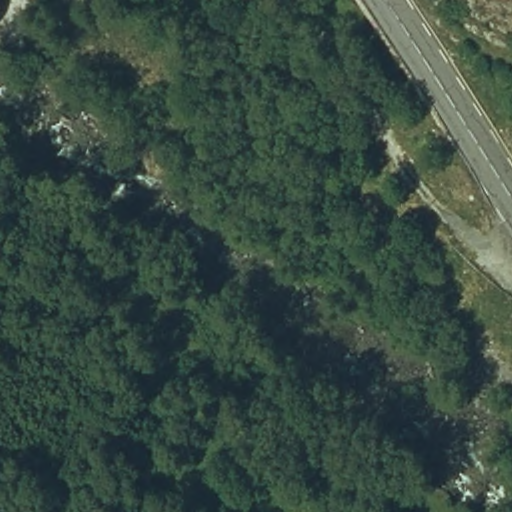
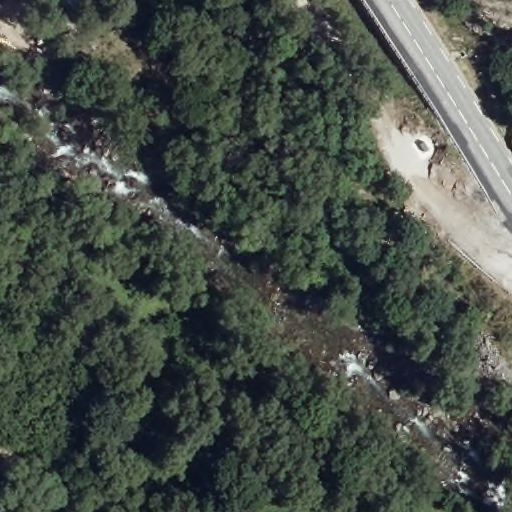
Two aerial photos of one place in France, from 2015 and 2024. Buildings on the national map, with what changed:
unchanged [(0,17),(0,0),(9,0),(5,7),(0,17)]

